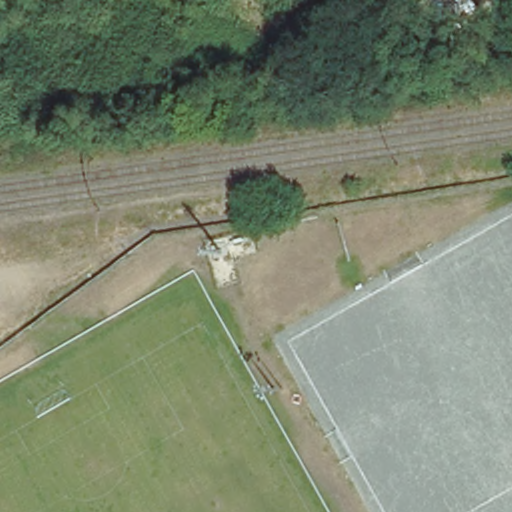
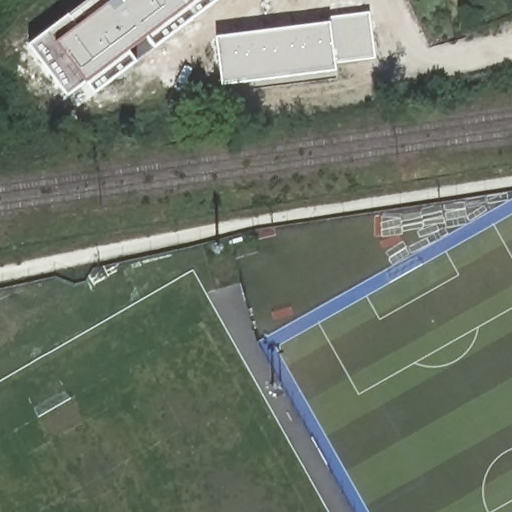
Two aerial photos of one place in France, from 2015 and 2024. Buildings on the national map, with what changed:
new [(155,48),(146,36),(129,51),(137,62),(95,93),(86,81),(67,96),(30,45),(89,0),(220,0),(155,48)]
new [(375,58),(335,63),(336,68),(224,86),(217,34),(369,14),(375,58)]

